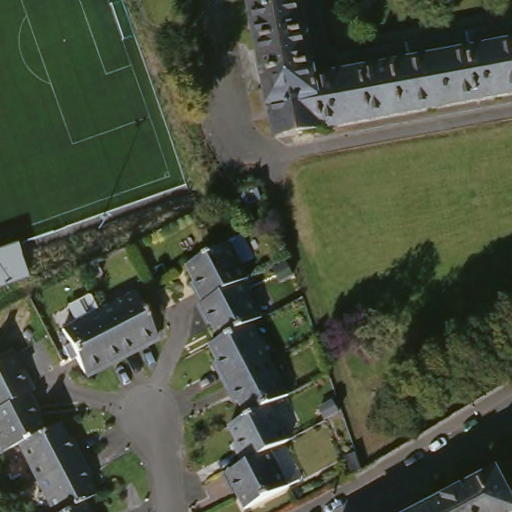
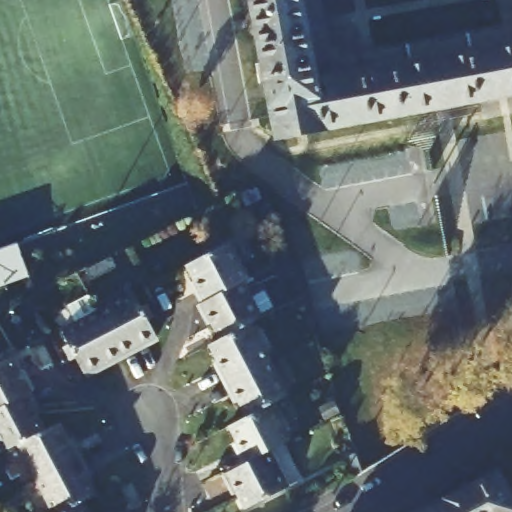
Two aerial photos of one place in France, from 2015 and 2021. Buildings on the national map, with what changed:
unchanged [(259,0),(314,0),(328,79),(512,45),(512,96),(285,138),(259,0)]
unchanged [(314,0),(332,0),(340,45),(356,57),(512,26),(512,45),(328,79),(314,0)]
unchanged [(215,343),(227,337),(208,301),(212,300),(194,264),(211,255),(237,241),(239,245),(256,276),(250,279),(270,316),(259,322),(296,393),(278,403),(296,439),(276,450),(295,484),(250,507),(231,471),(255,460),(236,424),(252,415),(215,343)]
unchanged [(0,287),(0,252),(20,245),(30,277),(0,287)]
unchanged [(71,331),(143,295),(150,308),(155,305),(162,320),(155,323),(164,340),(94,376),(85,358),(80,361),(74,348),(79,345),(71,331)]
unchanged [(10,453),(0,434),(0,365),(25,352),(46,391),(42,393),(60,427),(74,420),(111,492),(95,501),(101,512),(66,512),(30,443),(10,453)]
unchanged [(512,481),(512,512),(427,512),(506,471),(512,481)]

